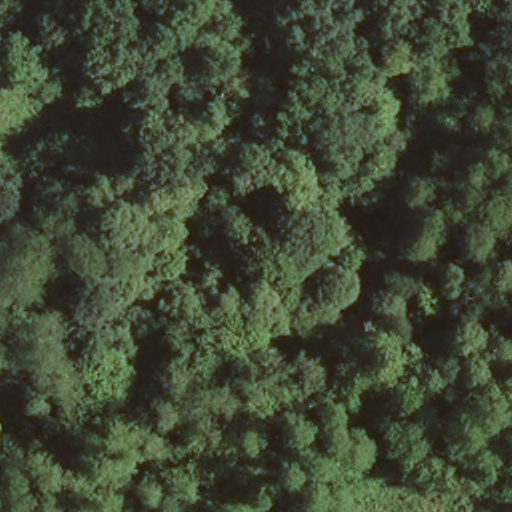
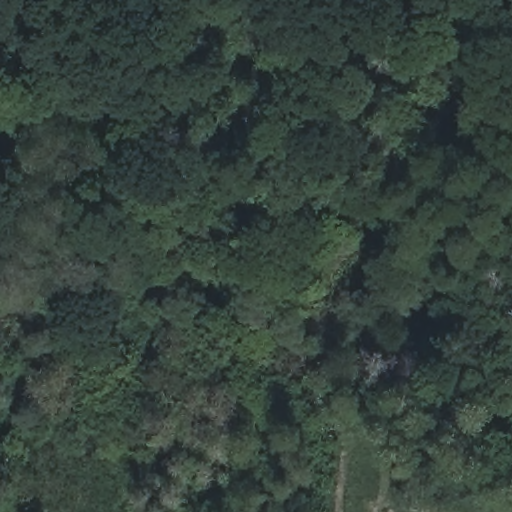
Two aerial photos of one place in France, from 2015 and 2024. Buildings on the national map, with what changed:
[]

